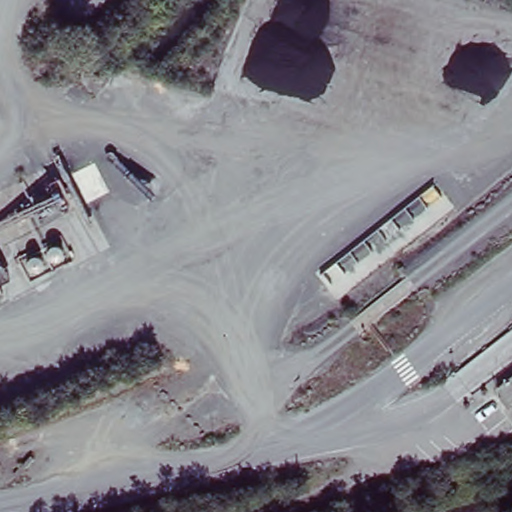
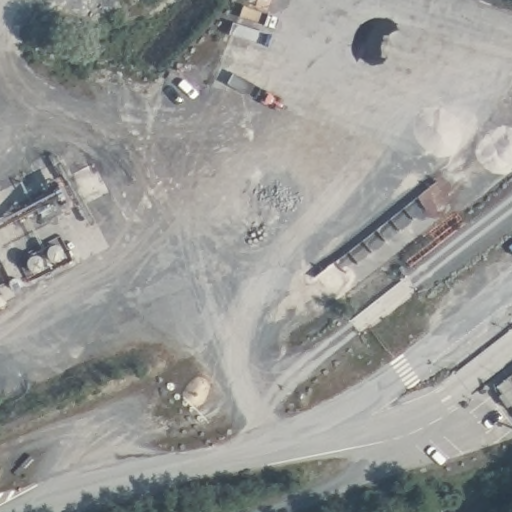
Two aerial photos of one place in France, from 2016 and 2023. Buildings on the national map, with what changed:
unchanged [(512,377),(512,401),(501,386),(512,377)]

